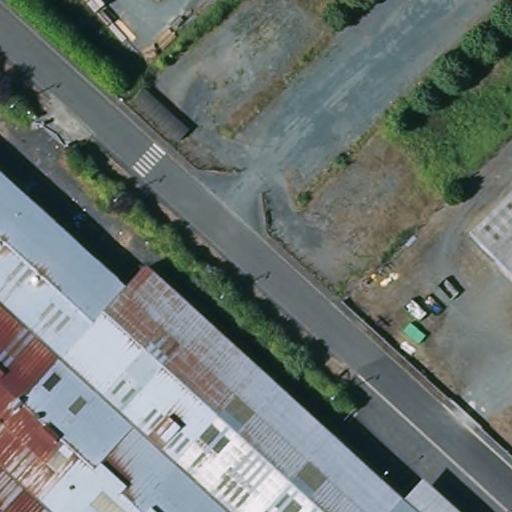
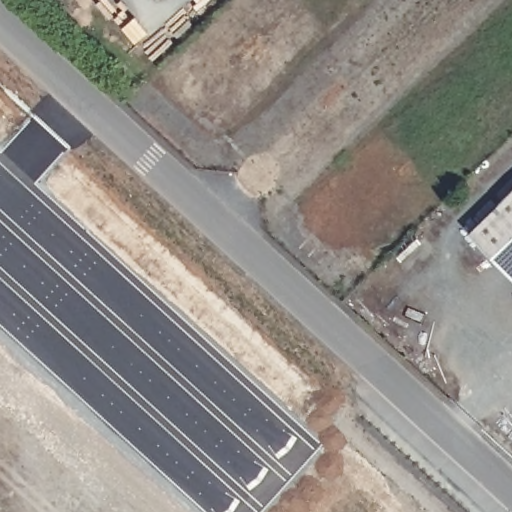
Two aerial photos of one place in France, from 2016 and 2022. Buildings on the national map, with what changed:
demolished [(0,174),(122,288),(145,264),(405,502),(416,512),(0,512),(0,174)]
unchanged [(468,229),(512,186),(512,275),(468,229)]

